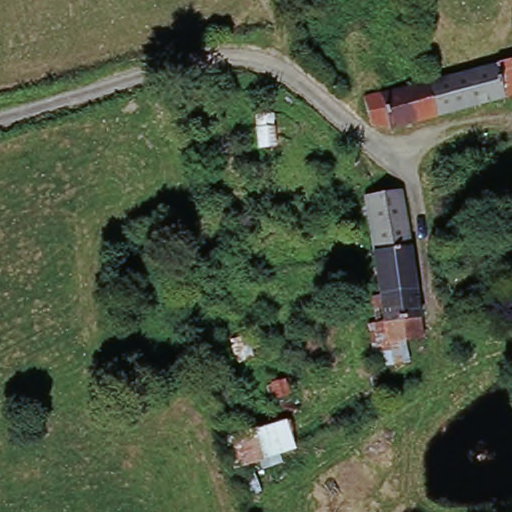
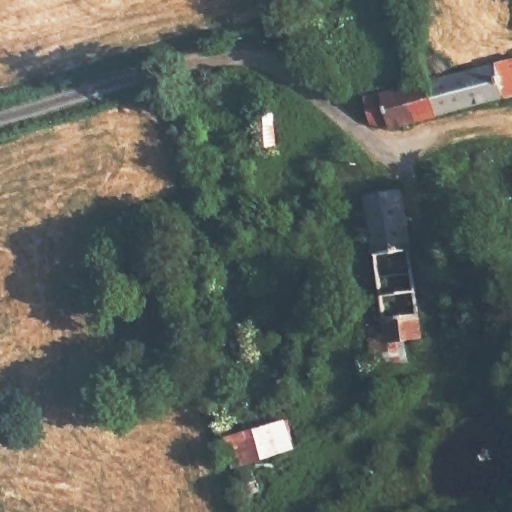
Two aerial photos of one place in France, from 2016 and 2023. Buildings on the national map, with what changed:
unchanged [(463,82),(497,74),(512,70),(512,107),(506,108),(439,124),(437,122),(430,90),(463,82)]
unchanged [(420,129),(390,136),(367,130),(342,103),(421,92),(430,90),(437,122),(439,124),(420,129)]
unchanged [(262,155),(260,124),(275,122),(279,153),(262,155)]
unchanged [(378,258),(369,201),(402,194),(403,196),(412,253),(378,258)]
unchanged [(392,349),(388,327),(386,308),(380,309),(377,299),(385,297),(378,258),(412,253),(423,322),(427,345),(392,349)]
unchanged [(232,358),(230,339),(246,336),(250,355),(232,358)]
unchanged [(276,397),(271,381),(282,378),(288,394),(276,397)]
unchanged [(240,477),(230,449),(288,430),(297,457),(240,477)]

